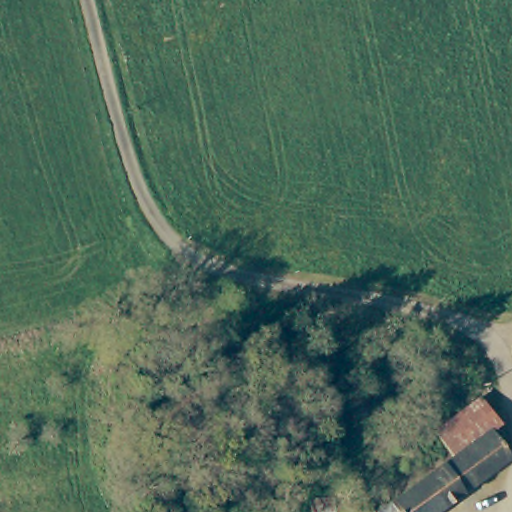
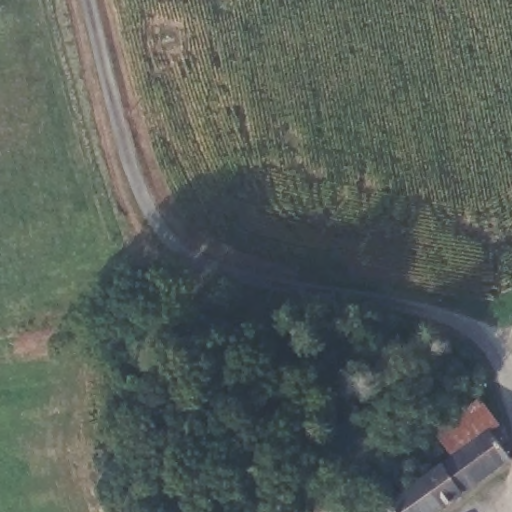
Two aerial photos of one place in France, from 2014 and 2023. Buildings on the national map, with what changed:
unchanged [(451,455),(432,430),(479,393),(499,417),(502,422),(494,428),(512,452),(512,453),(438,512),(381,512),(380,511),(451,455)]

